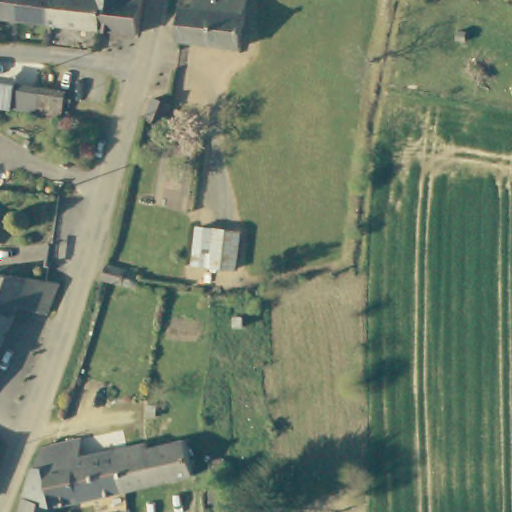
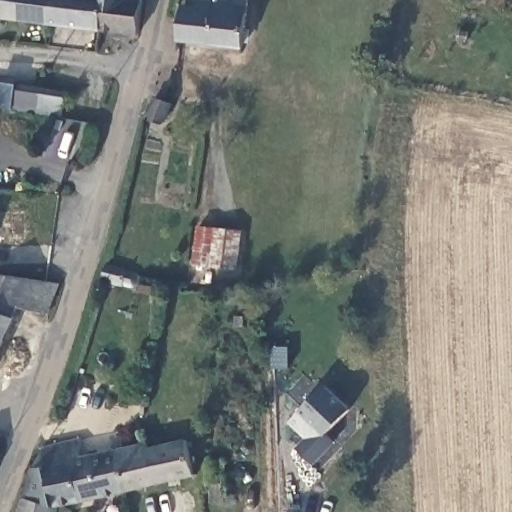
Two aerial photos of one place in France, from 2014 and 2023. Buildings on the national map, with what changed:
unchanged [(0,20),(0,4),(0,0),(56,0),(52,27),(0,20)]
unchanged [(52,27),(56,0),(105,0),(100,34),(52,27)]
unchanged [(137,37),(136,39),(100,34),(105,0),(131,0),(133,0),(141,1),(137,37)]
unchanged [(174,44),(181,0),(210,0),(203,47),(174,44)]
unchanged [(203,47),(210,0),(245,0),(239,52),(203,47)]
unchanged [(61,115),(38,113),(10,110),(12,84),(41,86),(62,87),(61,115)]
unchanged [(155,94),(172,102),(165,117),(147,109),(155,94)]
unchanged [(236,277),(197,272),(200,232),(239,236),(236,277)]
unchanged [(138,267),(141,271),(142,278),(138,284),(133,286),(127,283),(121,281),(102,277),(107,261),(138,267)]
unchanged [(0,344),(0,277),(57,287),(55,298),(47,319),(16,309),(0,344)]
new [(315,447),(291,423),(327,385),(352,409),(315,447)]
unchanged [(25,505),(33,476),(37,475),(42,455),(52,453),(83,446),(83,466),(116,457),(126,498),(67,512),(23,512),(25,505)]
unchanged [(187,446),(195,482),(156,492),(149,455),(187,446)]
unchanged [(148,450),(149,455),(156,492),(126,498),(116,457),(148,450)]
unchanged [(226,500),(211,499),(212,472),(226,471),(226,500)]

